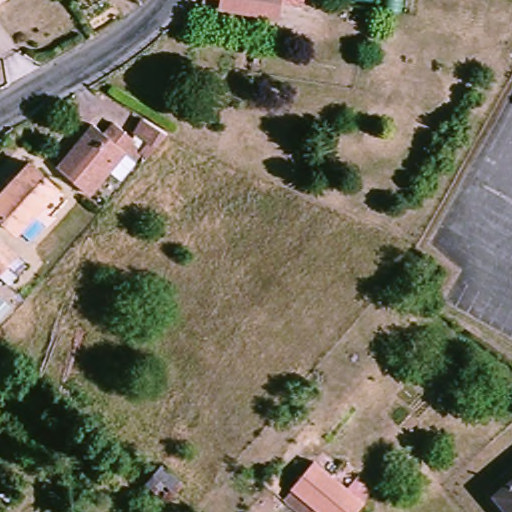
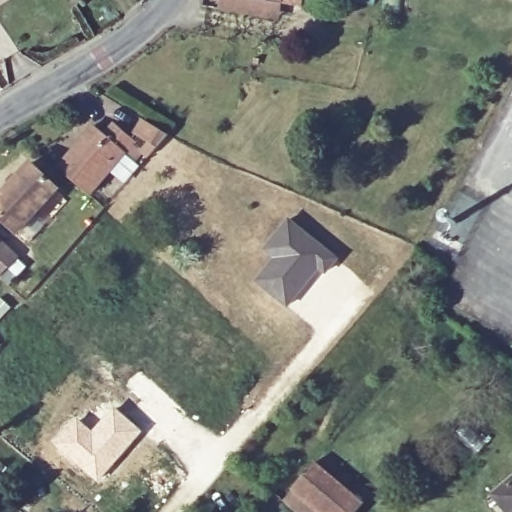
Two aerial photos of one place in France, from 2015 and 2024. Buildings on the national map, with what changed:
unchanged [(220,10),(222,0),(298,0),(296,8),(281,5),(279,21),(220,10)]
unchanged [(141,154),(147,146),(136,137),(145,125),(168,138),(150,160),(141,154)]
unchanged [(126,182),(111,170),(87,198),(61,175),(54,170),(90,129),(103,137),(113,126),(133,144),(123,155),(138,167),(126,182)]
unchanged [(54,189),(15,232),(10,228),(0,219),(0,191),(25,162),(49,184),(54,189)]
new [(271,257),(262,249),(288,216),(340,258),(323,275),(319,272),(287,307),(252,280),(271,257)]
unchanged [(0,276),(0,245),(16,258),(0,276)]
new [(76,415),(91,428),(113,405),(143,430),(98,482),(51,440),(76,415)]
unchanged [(316,466),(364,507),(360,512),(320,512),(319,511),(318,512),(297,512),(286,503),(297,492),(295,490),(316,466)]
unchanged [(512,512),(507,512),(495,498),(512,485),(512,512)]

